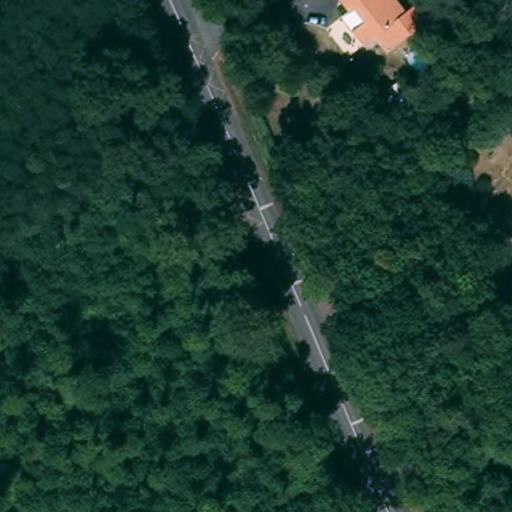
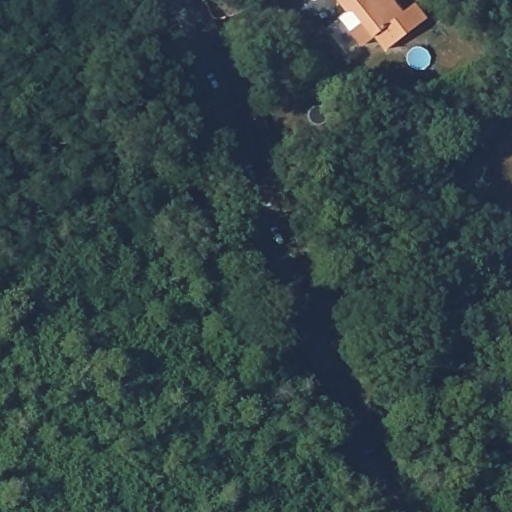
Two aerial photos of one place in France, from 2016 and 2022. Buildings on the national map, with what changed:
unchanged [(345,0),(397,0),(409,19),(422,11),(431,25),(386,54),(376,40),(362,49),(352,33),(343,19),(353,13),(345,0)]

